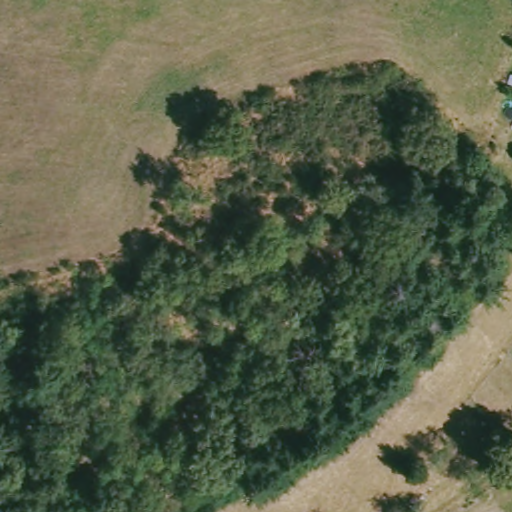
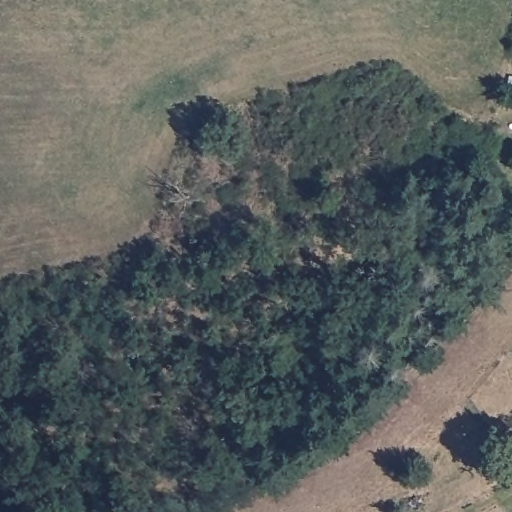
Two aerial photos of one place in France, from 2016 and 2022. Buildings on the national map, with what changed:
[]

